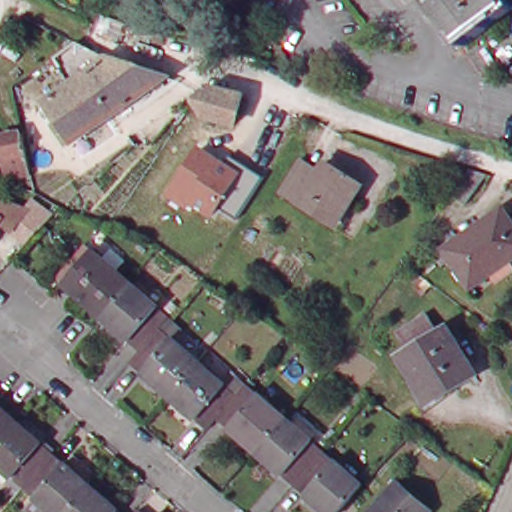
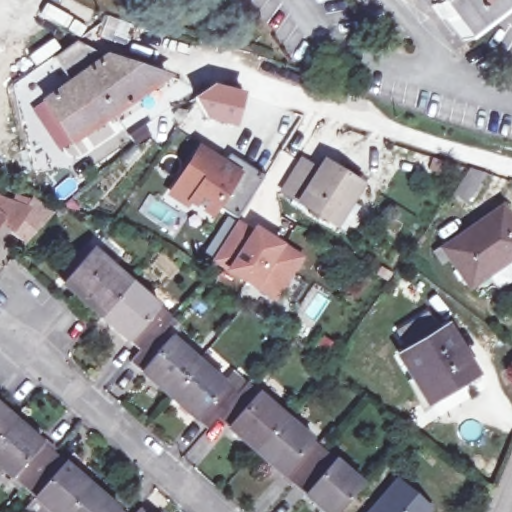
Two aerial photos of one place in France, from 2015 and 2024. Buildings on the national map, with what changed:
unchanged [(132,12),(122,0),(147,0),(132,12)]
unchanged [(504,1),(462,33),(445,8),(440,11),(432,0),(503,0),(504,1)]
unchanged [(172,80),(79,146),(52,105),(77,86),(59,61),(80,45),(90,50),(112,60),(170,77),(172,80)]
unchanged [(245,134),(215,126),(205,110),(222,96),(252,103),(245,134)]
unchanged [(7,177),(0,141),(0,135),(22,131),(24,140),(30,173),(7,177)]
unchanged [(225,162),(230,156),(262,176),(237,217),(222,207),(214,220),(195,205),(190,210),(166,196),(199,147),(225,162)]
unchanged [(361,182),(350,200),(345,197),(330,221),(282,191),(299,166),(303,159),(320,171),(327,160),(361,182)]
unchanged [(487,172),(466,200),(452,191),(470,166),(487,172)]
unchanged [(11,227),(0,240),(0,192),(47,212),(31,231),(11,227)]
unchanged [(450,247),(508,207),(512,213),(512,259),(475,285),(450,247)]
new [(267,292),(214,258),(236,222),(253,232),(256,227),(302,256),(292,271),(276,297),(267,292)]
unchanged [(74,277),(104,244),(142,277),(127,295),(112,311),(74,277)]
unchanged [(180,311),(179,313),(171,322),(158,337),(151,345),(112,311),(127,295),(142,277),(180,311)]
unchanged [(474,369),(427,398),(401,353),(410,348),(400,332),(427,315),(437,332),(447,326),(474,369)]
unchanged [(210,356),(180,390),(141,357),(151,345),(158,337),(171,322),(210,356)]
unchanged [(243,365),(252,372),(257,377),(227,412),(218,422),(180,390),(210,356),(233,377),(243,365)]
unchanged [(227,412),(257,377),(295,411),(266,445),(227,412)]
unchanged [(335,445),(305,478),(266,445),(295,411),(335,445)]
unchanged [(0,412),(15,425),(0,441),(0,412)]
unchanged [(24,492),(0,471),(0,441),(15,425),(54,457),(24,492)]
unchanged [(373,477),(343,512),(305,478),(335,445),(373,477)]
unchanged [(54,457),(91,490),(88,494),(72,512),(47,512),(24,492),(54,457)]
unchanged [(434,512),(369,512),(397,481),(434,512)]
unchanged [(91,490),(117,512),(72,512),(88,494),(91,490)]

